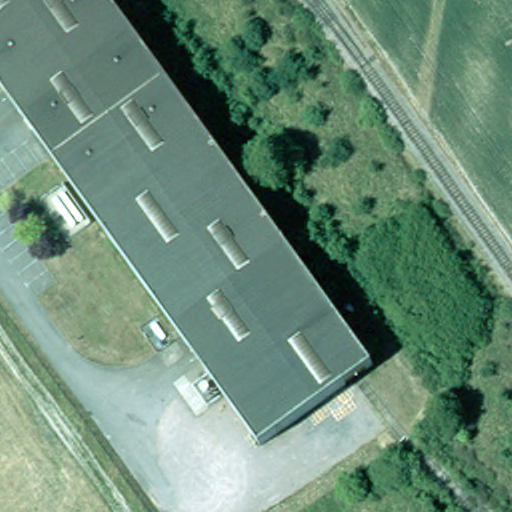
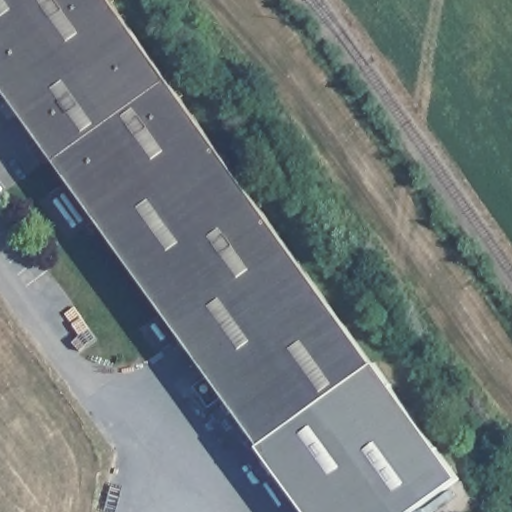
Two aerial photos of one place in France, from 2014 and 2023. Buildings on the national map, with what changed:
unchanged [(256,445),(0,73),(0,0),(120,0),(372,365),(256,445)]
new [(457,480),(412,512),(305,512),(256,445),(372,365),(457,480)]

